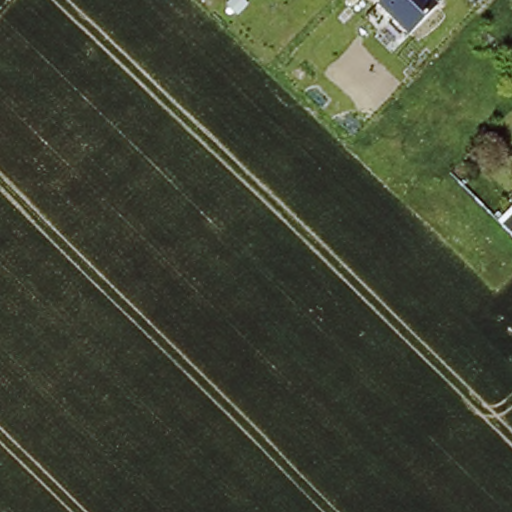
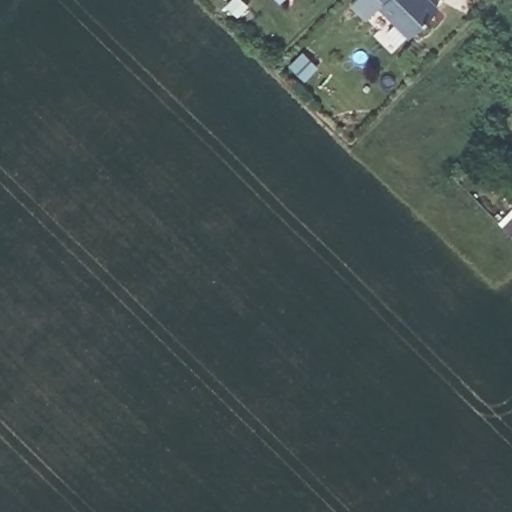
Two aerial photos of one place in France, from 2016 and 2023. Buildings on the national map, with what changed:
unchanged [(436,4),(409,35),(374,7),(380,0),(431,0),(436,4)]
unchanged [(510,238),(512,235),(512,240),(510,238)]

